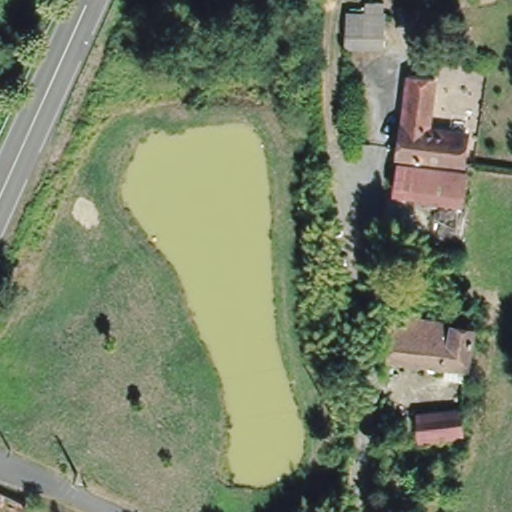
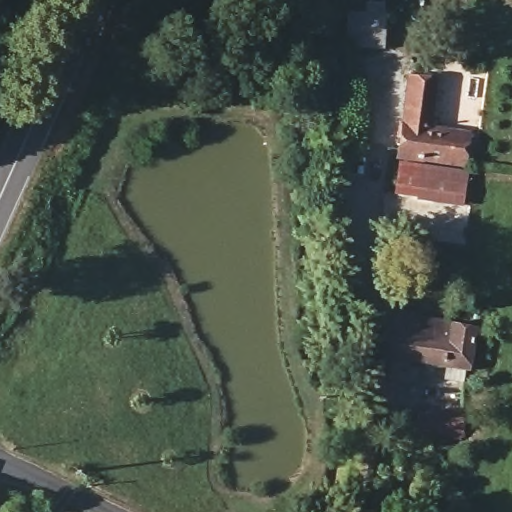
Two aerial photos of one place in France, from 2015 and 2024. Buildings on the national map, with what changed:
unchanged [(343,45),(343,4),(382,6),(383,41),(343,45)]
unchanged [(387,190),(411,58),(436,58),(427,118),(470,126),(462,201),(387,190)]
unchanged [(457,317),(456,326),(472,329),(469,364),(390,347),(395,301),(457,317)]
unchanged [(458,431),(412,433),(413,407),(461,400),(458,431)]

